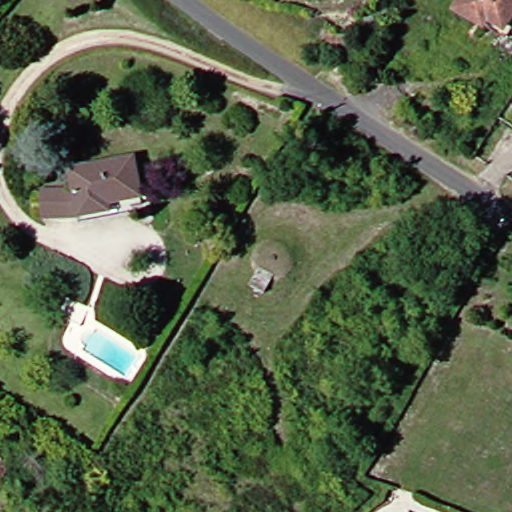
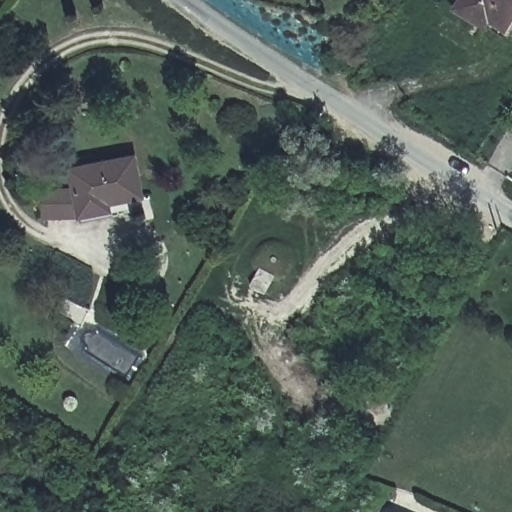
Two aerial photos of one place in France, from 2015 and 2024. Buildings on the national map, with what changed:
unchanged [(484,15),(480,22),(458,9),(464,0),(512,0),(512,26),(509,30),(484,15)]
unchanged [(108,201),(109,212),(82,217),(71,171),(132,156),(136,174),(140,196),(119,199),(108,201)]
unchanged [(144,415),(135,408),(140,399),(150,405),(144,415)]

